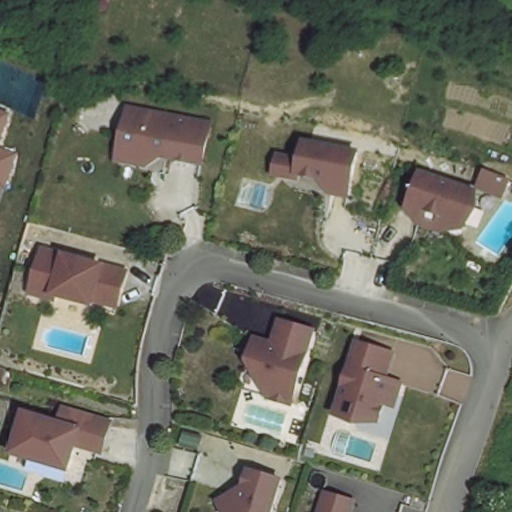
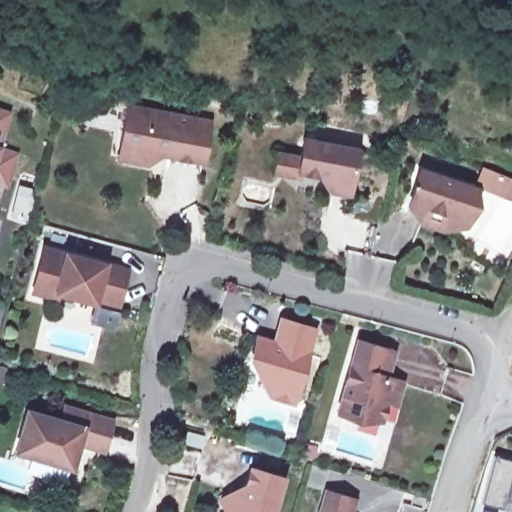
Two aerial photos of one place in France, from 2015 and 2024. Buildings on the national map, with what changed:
unchanged [(121,147),(129,107),(210,123),(202,163),(161,155),(147,165),(119,160),(121,147)]
unchanged [(12,112),(2,147),(20,154),(10,188),(0,185),(0,109),(12,112)]
unchanged [(357,156),(348,200),(331,197),(325,187),(325,182),(300,178),(299,183),(275,178),(279,160),(301,164),(305,146),(357,156)]
unchanged [(415,227),(418,218),(404,213),(417,177),(472,195),(459,231),(440,225),(437,235),(415,227)]
unchanged [(95,298),(94,302),(57,292),(57,298),(34,292),(45,250),(127,271),(121,293),(118,292),(115,303),(95,298)]
unchanged [(314,340),(292,413),(270,406),(274,395),(262,391),(254,377),(257,369),(253,363),(257,348),(279,355),(281,348),(276,347),(281,330),(314,340)]
unchanged [(386,384),(402,388),(395,410),(385,407),(380,426),(359,420),(353,423),(337,418),(357,347),(393,358),(387,377),(386,384)]
unchanged [(15,457),(27,417),(62,428),(66,413),(111,427),(102,456),(77,448),(70,473),(15,457)]
new [(494,456),(512,461),(512,512),(511,512),(502,510),(481,503),(494,456)]
unchanged [(235,498),(244,500),(251,475),(282,485),(274,512),(223,512),(220,506),(235,498)]
unchanged [(327,503),(354,511),(354,512),(324,512),(327,503)]
demolished [(472,503),(504,512),(470,512),(472,503)]

